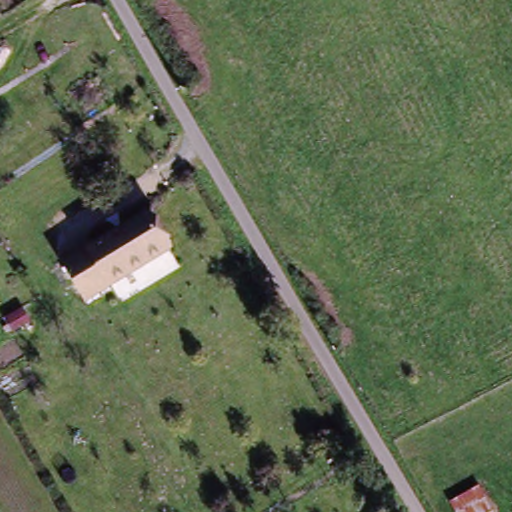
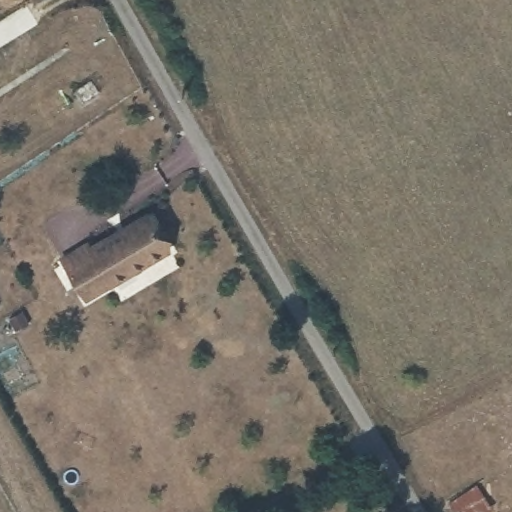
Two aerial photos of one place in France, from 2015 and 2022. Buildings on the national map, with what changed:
unchanged [(94,252),(147,217),(172,253),(89,304),(64,264),(89,247),(94,252)]
unchanged [(2,315),(0,316),(0,311),(2,315)]
unchanged [(448,506),(479,490),(490,512),(451,512),(448,506)]

